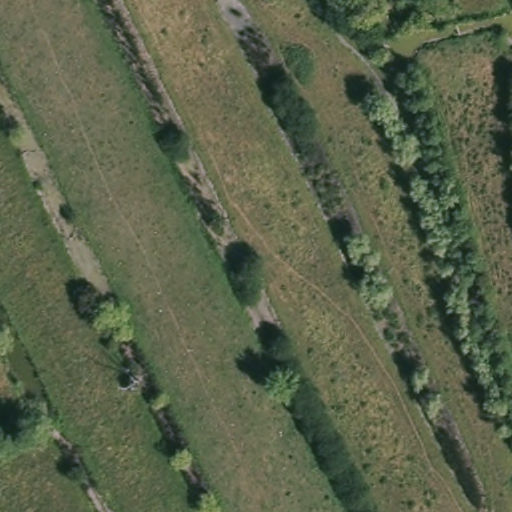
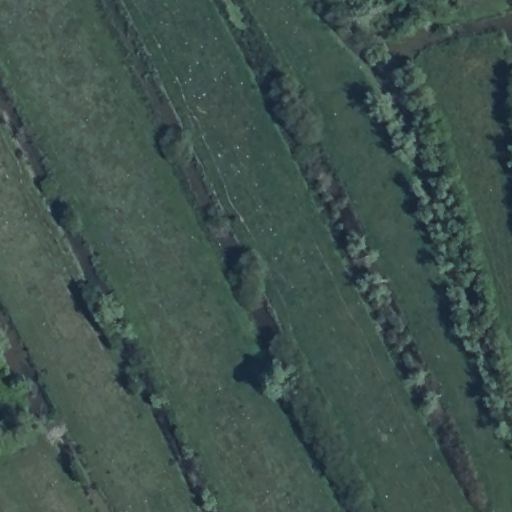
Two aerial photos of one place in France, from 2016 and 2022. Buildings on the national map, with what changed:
[]

